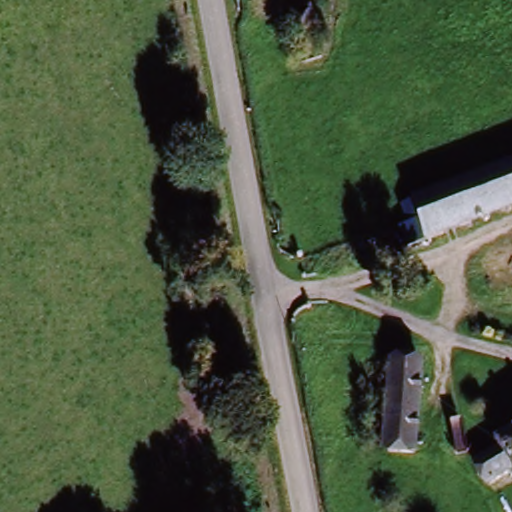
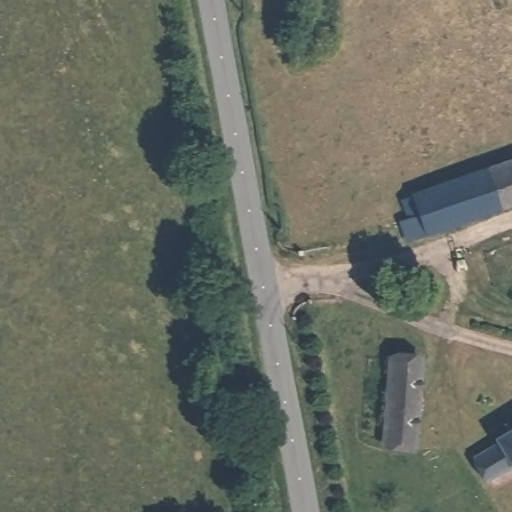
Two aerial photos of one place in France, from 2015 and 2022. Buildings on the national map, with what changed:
unchanged [(319,59),(295,64),(286,14),(311,10),(319,59)]
unchanged [(512,167),(512,210),(417,236),(414,220),(407,193),(512,167)]
unchanged [(414,444),(385,441),(394,363),(423,366),(414,444)]
unchanged [(506,471),(485,479),(478,458),(495,452),(491,442),(512,432),(512,477),(509,479),(506,471)]

